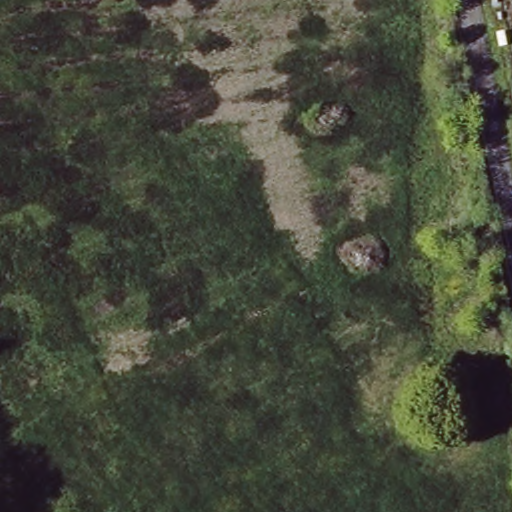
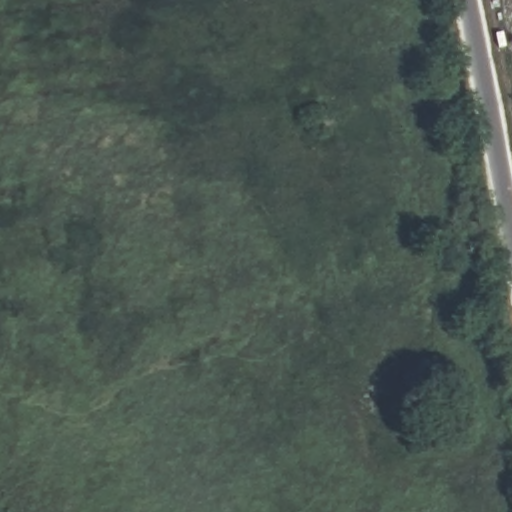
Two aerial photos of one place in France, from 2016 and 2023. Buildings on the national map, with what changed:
unchanged [(488,351),(472,351),(471,332),(460,331),(461,310),(487,310),(488,351)]

